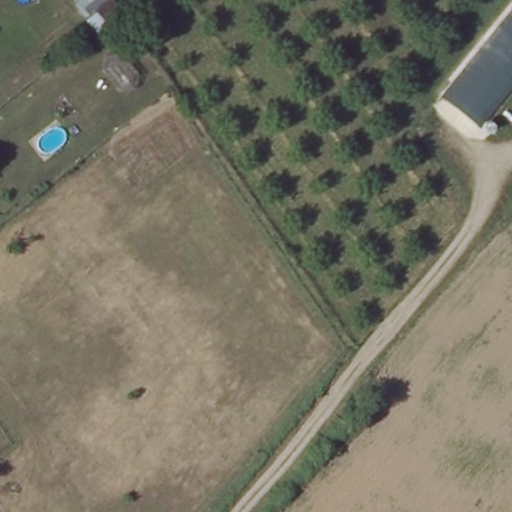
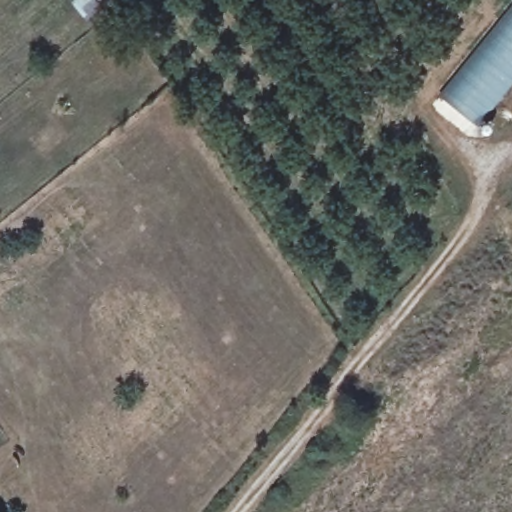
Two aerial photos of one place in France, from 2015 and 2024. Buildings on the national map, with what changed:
unchanged [(114,12),(107,0),(126,0),(128,3),(114,12)]
unchanged [(512,2),(512,76),(509,80),(469,127),(431,94),(512,2)]

